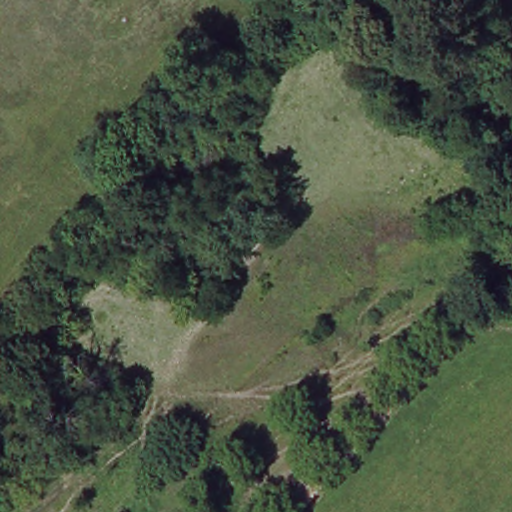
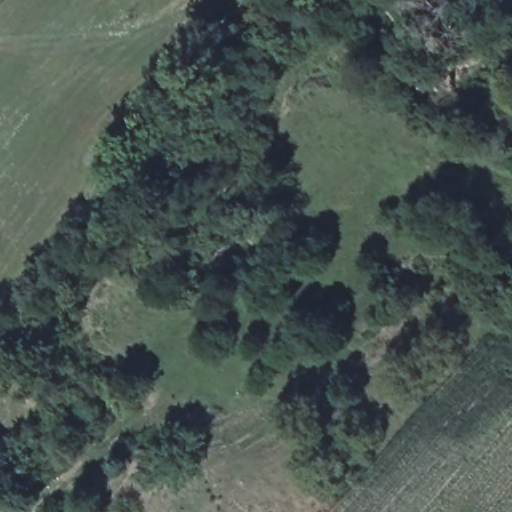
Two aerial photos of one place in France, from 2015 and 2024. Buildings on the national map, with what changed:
[]

